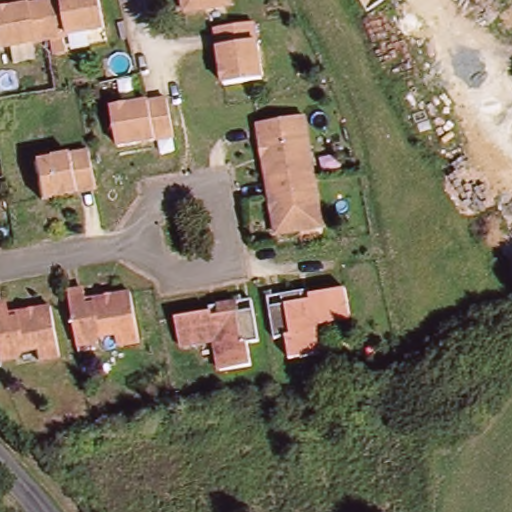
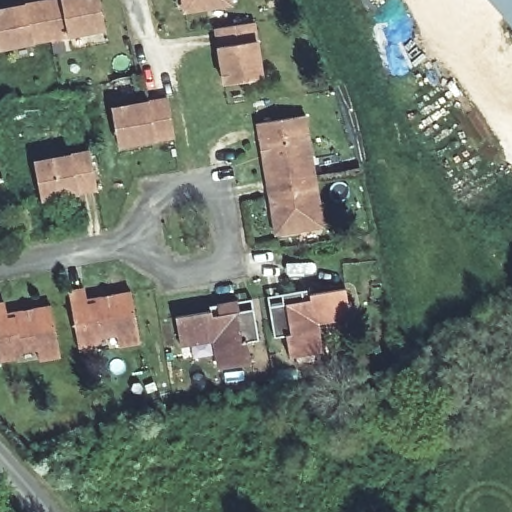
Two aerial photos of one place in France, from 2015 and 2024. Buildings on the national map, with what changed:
unchanged [(101,2),(106,31),(0,49),(0,12),(5,12),(26,8),(65,2),(72,0),(100,0),(101,2)]
unchanged [(237,1),(190,10),(188,0),(237,0),(237,1)]
new [(512,24),(490,0),(512,0),(512,24)]
unchanged [(224,65),(221,47),(218,29),(226,27),(254,22),(264,77),(236,83),(227,85),(224,65)]
unchanged [(120,134),(115,107),(169,97),(174,124),(175,131),(156,135),(141,137),(122,141),(120,134)]
unchanged [(267,160),(264,144),(261,124),(306,116),(324,225),(279,232),(277,217),(273,197),(267,160)]
unchanged [(60,194),(43,197),(36,162),(91,152),(96,179),(97,186),(60,194)]
unchanged [(115,340),(78,345),(71,293),(87,291),(89,299),(134,292),(142,343),(116,347),(115,340)]
unchanged [(292,361),(288,341),(273,343),(267,301),(312,292),(313,296),(350,292),(354,320),(318,326),(323,354),(292,361)]
unchanged [(221,370),(216,344),(182,350),(177,319),(208,312),(207,305),(252,298),(259,341),(246,343),(250,365),(221,370)]
unchanged [(62,356),(35,360),(34,351),(0,356),(0,304),(7,302),(8,311),(55,305),(62,356)]

